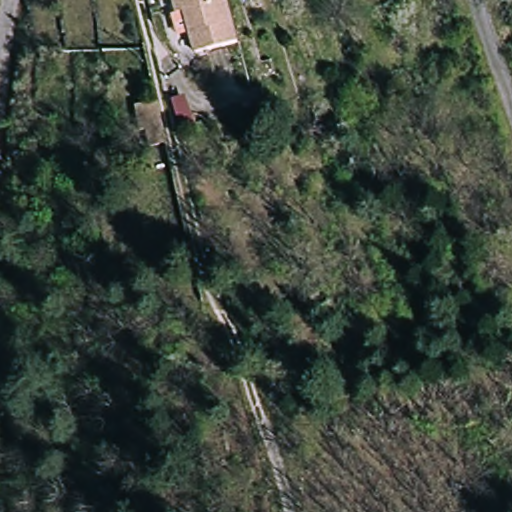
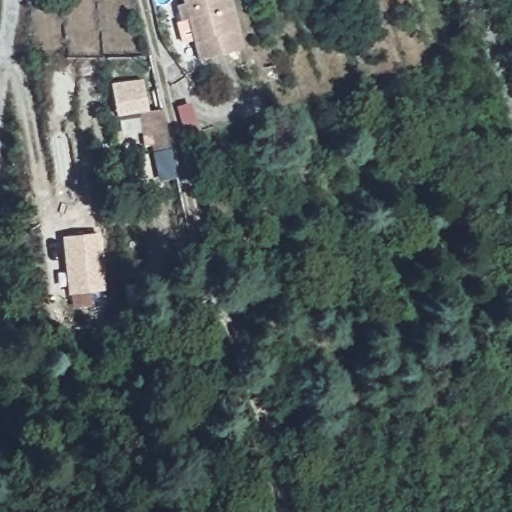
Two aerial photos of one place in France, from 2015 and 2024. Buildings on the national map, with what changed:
unchanged [(203,58),(192,19),(185,20),(181,4),(188,1),(187,0),(231,0),(244,47),(203,58)]
unchanged [(153,145),(145,145),(140,120),(163,117),(173,159),(155,159),(153,145)]
new [(68,295),(62,236),(102,232),(108,291),(68,295)]

